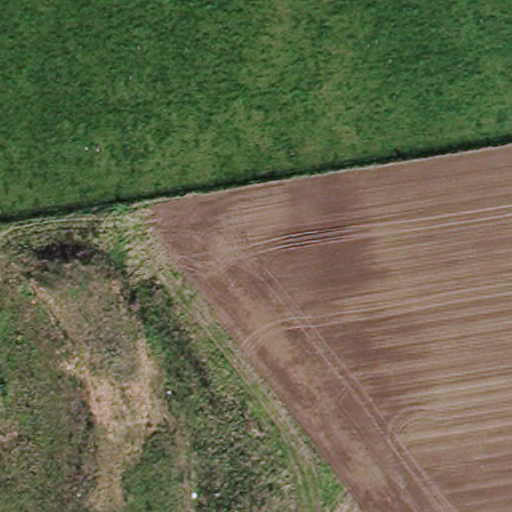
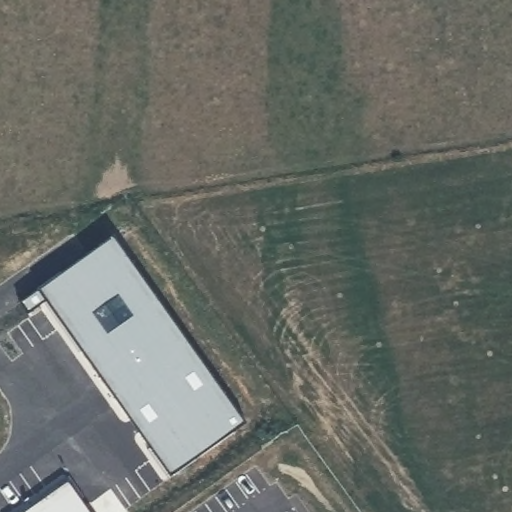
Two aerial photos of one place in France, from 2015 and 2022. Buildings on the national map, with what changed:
new [(29,302),(121,238),(266,436),(173,494),(29,302)]

